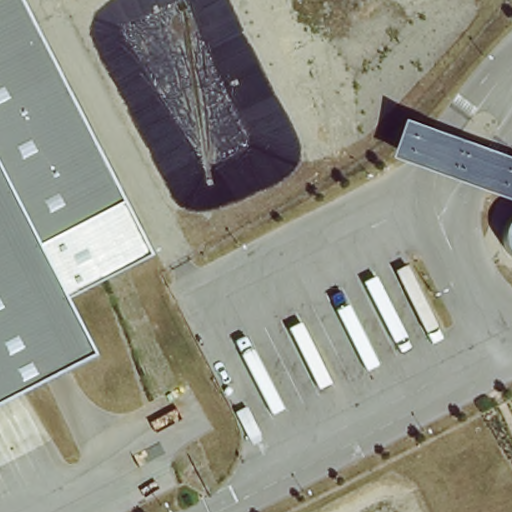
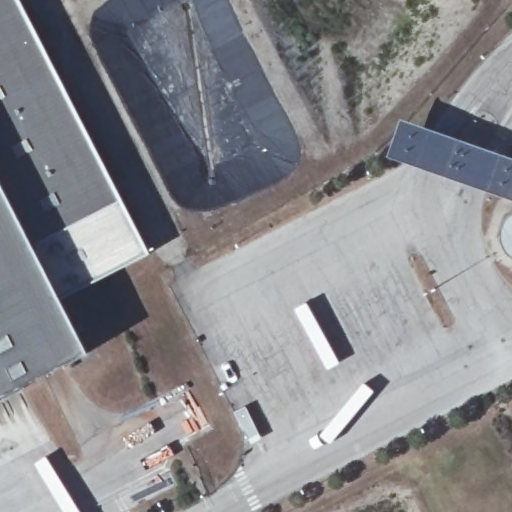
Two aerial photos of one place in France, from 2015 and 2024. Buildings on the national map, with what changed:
unchanged [(0,393),(0,0),(21,0),(148,252),(61,294),(85,350),(0,393)]
unchanged [(512,154),(512,259),(503,256),(496,242),(501,223),(509,200),(391,157),(405,118),(512,154)]

